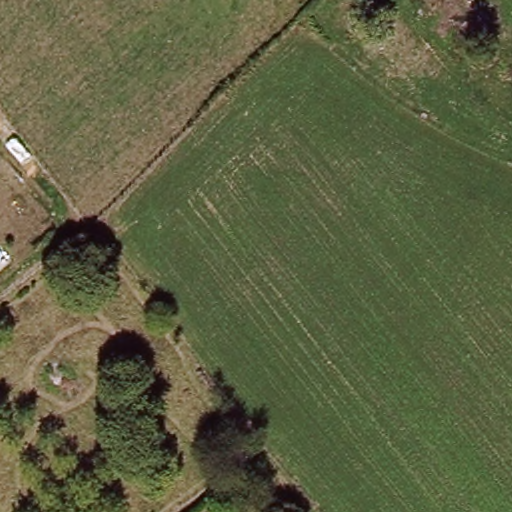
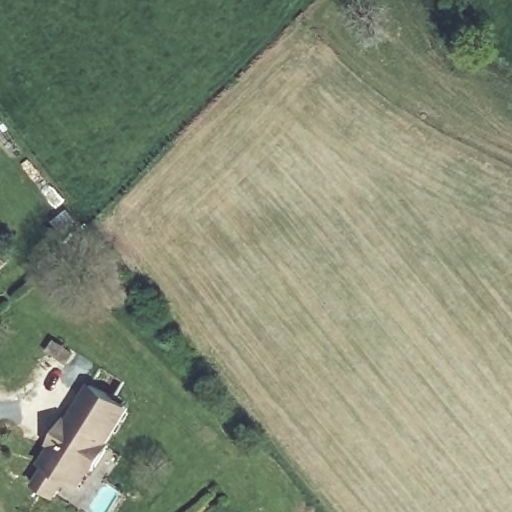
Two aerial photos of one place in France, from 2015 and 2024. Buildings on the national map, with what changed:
new [(51,468),(46,464),(57,447),(54,445),(70,419),(75,423),(80,416),(77,414),(94,387),(132,409),(110,444),(112,446),(97,472),(95,469),(84,487),(71,479),(60,497),(40,485),(51,468)]

